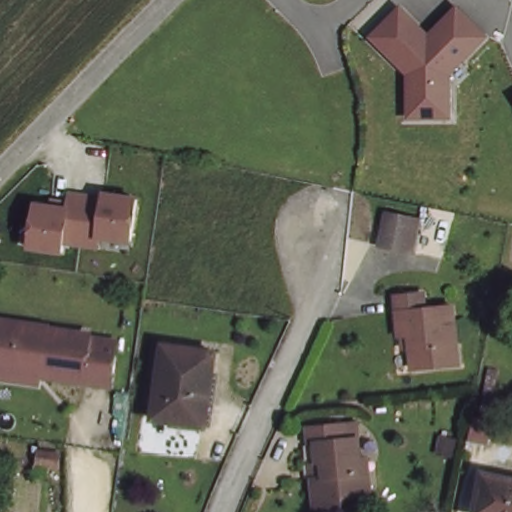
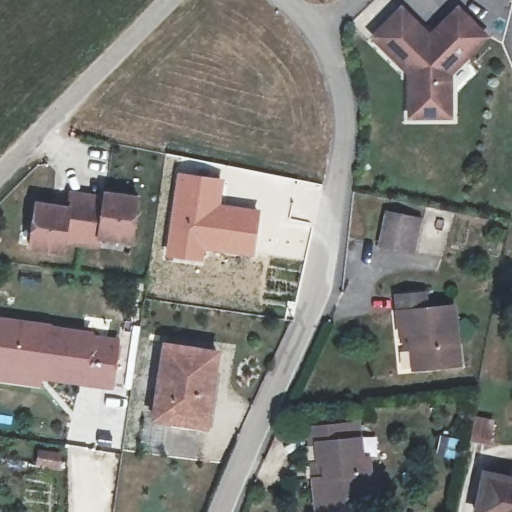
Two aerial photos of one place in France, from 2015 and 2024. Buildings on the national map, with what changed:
unchanged [(414,72),(377,35),(405,7),(433,35),(462,7),(490,35),(454,72),(454,115),(425,115),(414,115),(414,72)]
new [(175,171),(224,177),(221,202),(262,208),(254,257),(205,251),(204,262),(164,257),(175,171)]
unchanged [(142,198),(136,241),(104,237),(102,246),(69,242),(67,251),(34,247),(40,203),(56,206),(57,200),(73,202),(74,198),(75,192),(109,197),(109,193),(142,198)]
unchanged [(412,252),(407,251),(380,245),(387,212),(414,219),(419,220),(412,252)]
unchanged [(404,335),(401,336),(397,296),(424,292),(425,308),(453,306),(459,365),(414,369),(412,347),(405,347),(404,335)]
unchanged [(0,382),(0,327),(0,323),(53,331),(52,336),(122,346),(115,391),(47,382),(45,389),(0,382)]
unchanged [(165,345),(217,352),(206,427),(154,418),(165,345)]
unchanged [(317,457),(315,437),(309,438),(307,422),(345,418),(357,417),(359,432),(361,452),(367,451),(371,488),(343,491),(344,500),(315,502),(313,473),(311,458),(317,457)]
unchanged [(442,437),(456,441),(452,455),(439,452),(442,437)]
unchanged [(512,512),(476,512),(485,473),(512,479),(512,512)]

